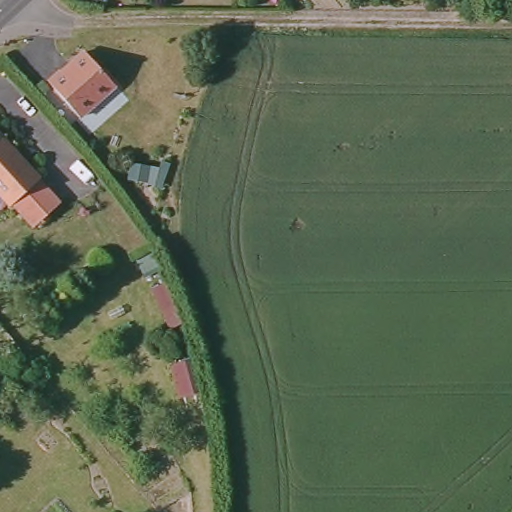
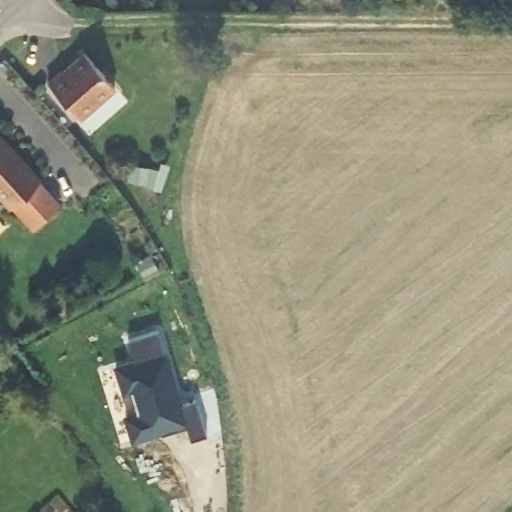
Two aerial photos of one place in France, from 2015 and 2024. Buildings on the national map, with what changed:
unchanged [(80,115),(49,83),(60,72),(62,72),(85,51),(115,83),(80,115)]
unchanged [(10,206),(0,195),(0,135),(60,202),(32,228),(12,205),(10,206)]
new [(132,440),(125,414),(135,409),(132,391),(124,394),(114,363),(133,357),(129,338),(160,329),(185,403),(196,398),(207,433),(190,438),(187,424),(132,440)]

